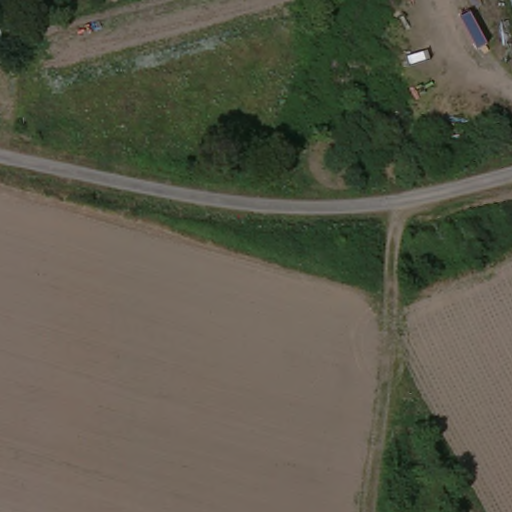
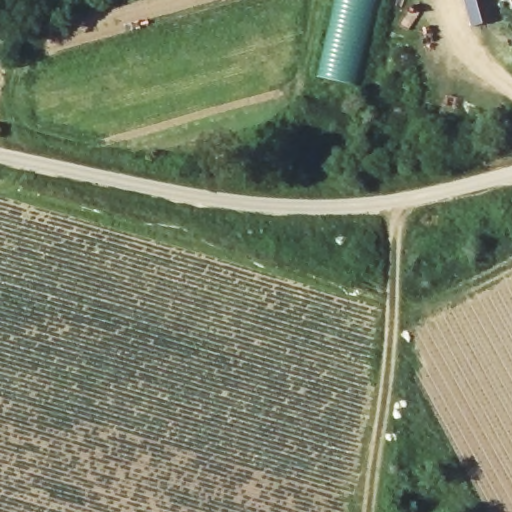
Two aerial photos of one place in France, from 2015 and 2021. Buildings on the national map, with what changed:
new [(321,75),(338,0),(372,0),(352,82),(321,75)]
unchanged [(507,0),(512,0),(512,10),(507,0)]

